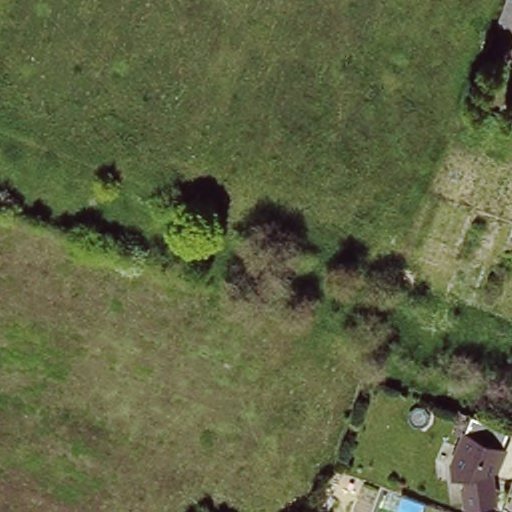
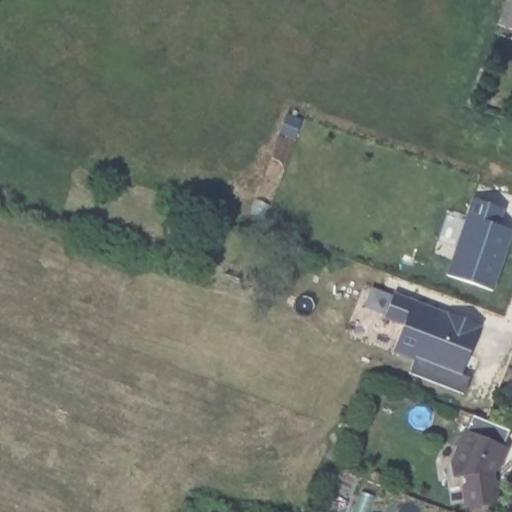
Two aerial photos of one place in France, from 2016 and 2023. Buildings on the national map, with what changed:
unchanged [(512,0),(512,29),(497,24),(507,0),(512,0)]
new [(491,289),(444,274),(471,197),(503,209),(497,226),(512,232),(491,289)]
new [(460,375),(468,377),(462,393),(407,373),(413,360),(392,353),(402,326),(382,318),(393,292),(482,327),(460,375)]
unchanged [(465,507),(461,486),(464,486),(462,473),(452,476),(450,463),(462,429),(466,430),(472,415),(508,430),(502,445),(509,448),(498,472),(494,472),(498,501),(465,507)]

